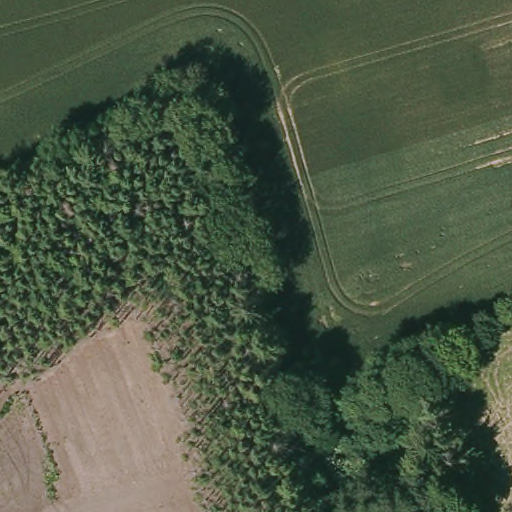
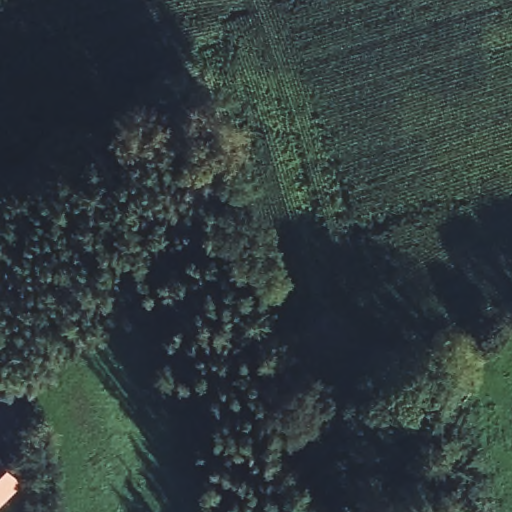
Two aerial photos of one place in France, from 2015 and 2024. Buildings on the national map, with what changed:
new [(0,505),(0,458),(24,482),(0,505)]

